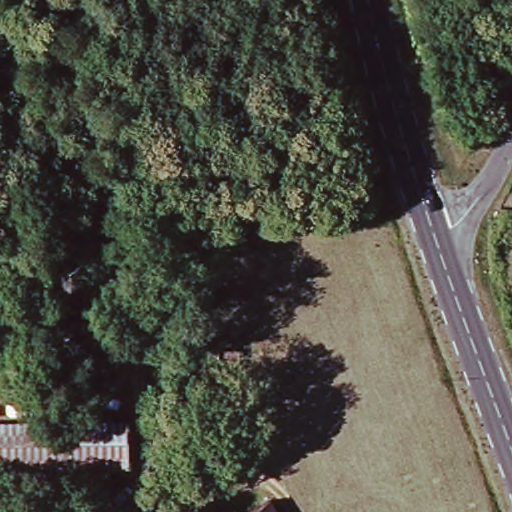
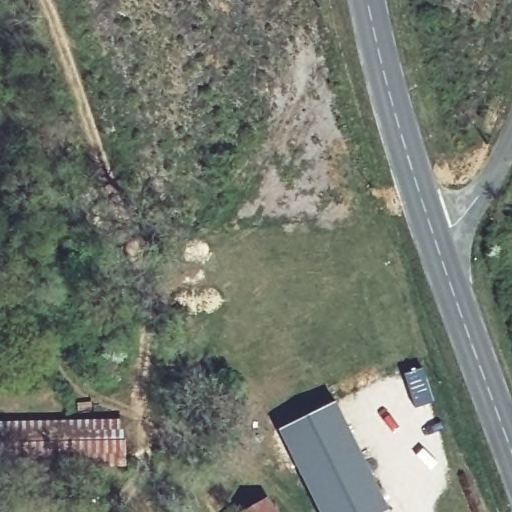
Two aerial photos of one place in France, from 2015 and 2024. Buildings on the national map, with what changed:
new [(342,402),(395,511),(393,512),(327,512),(287,428),(342,402)]
unchanged [(0,466),(0,427),(136,423),(137,461),(112,462),(8,465),(0,466)]
unchanged [(9,496),(8,465),(112,462),(113,493),(9,496)]
unchanged [(274,500),(280,512),(254,512),(274,500)]
unchanged [(173,512),(165,512),(172,508),(173,512)]
new [(395,511),(395,512),(393,512),(395,511)]

